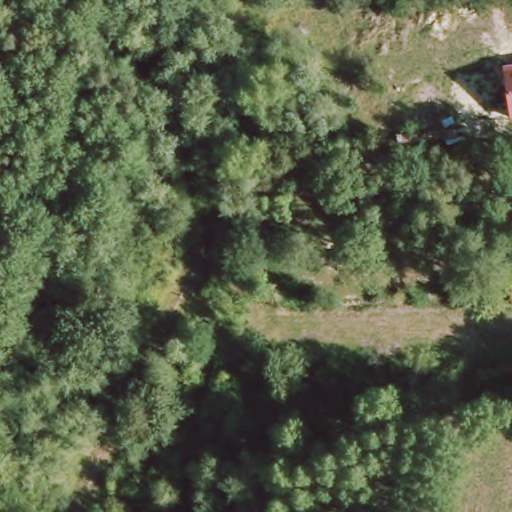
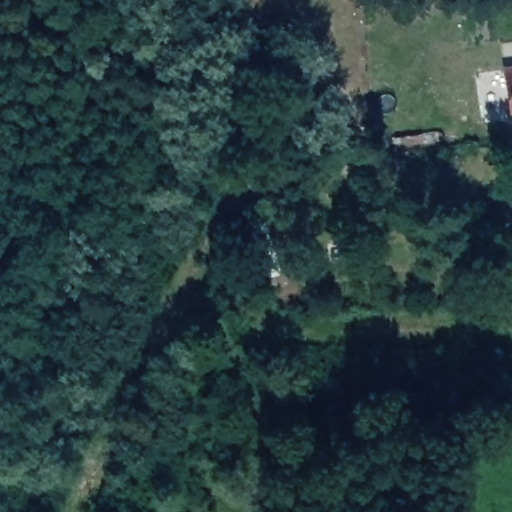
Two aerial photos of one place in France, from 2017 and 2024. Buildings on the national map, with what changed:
unchanged [(501,66),(512,65),(512,120),(510,120),(503,72),(501,66)]

